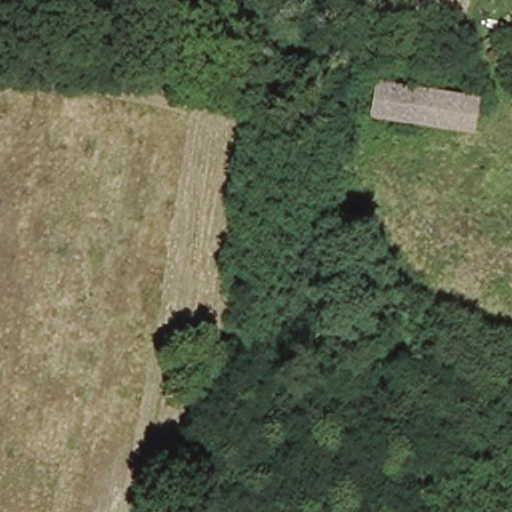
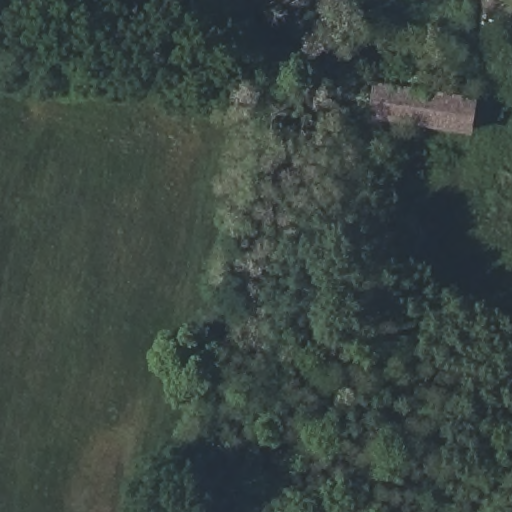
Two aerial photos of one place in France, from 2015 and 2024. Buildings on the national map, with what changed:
unchanged [(381,83),(392,77),(480,93),(476,129),(377,111),(381,83)]

